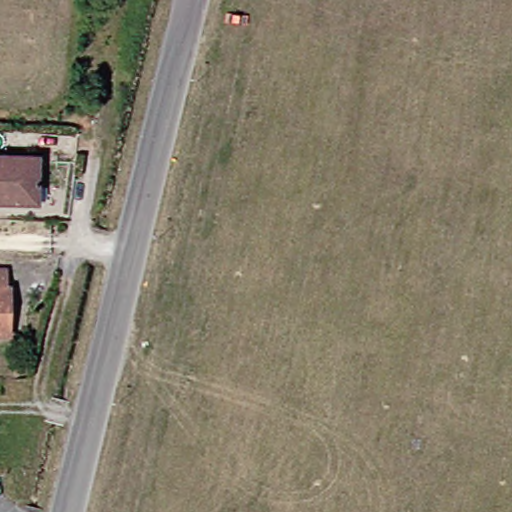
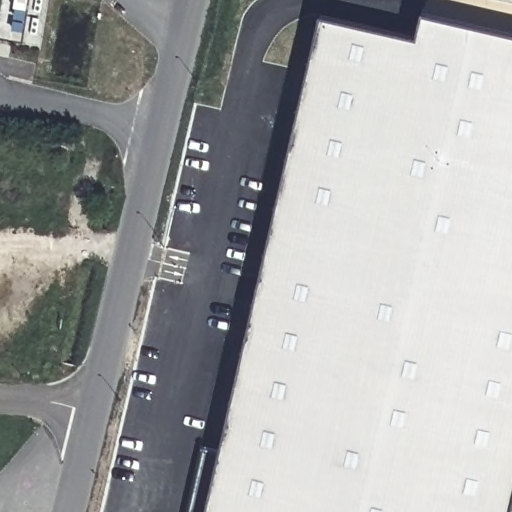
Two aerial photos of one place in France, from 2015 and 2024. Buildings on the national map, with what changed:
new [(417,38),(423,13),(512,34),(512,504),(510,512),(207,512),(320,16),(417,38)]
unchanged [(0,210),(0,154),(36,155),(36,189),(26,189),(25,210),(0,210)]
unchanged [(5,289),(4,303),(2,337),(0,337),(0,289),(5,289)]

